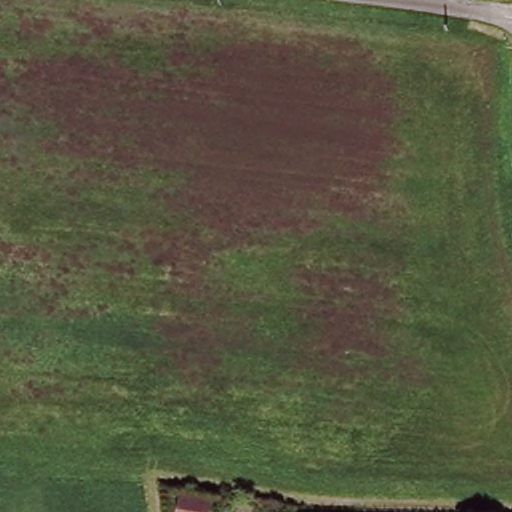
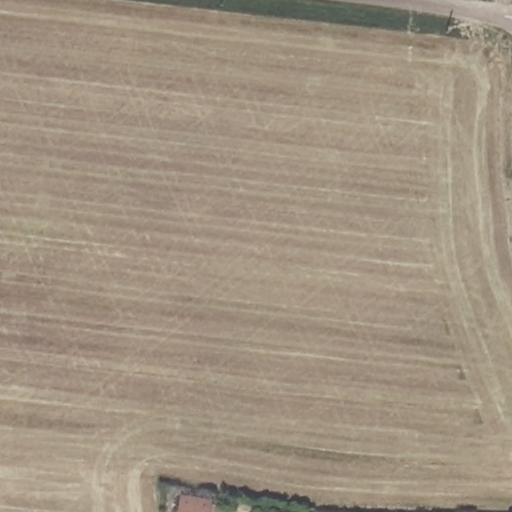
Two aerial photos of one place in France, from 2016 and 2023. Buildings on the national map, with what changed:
unchanged [(211,512),(179,512),(182,495),(213,501),(211,512)]

